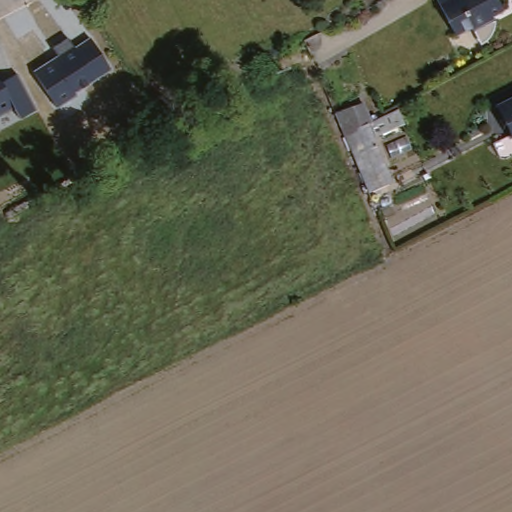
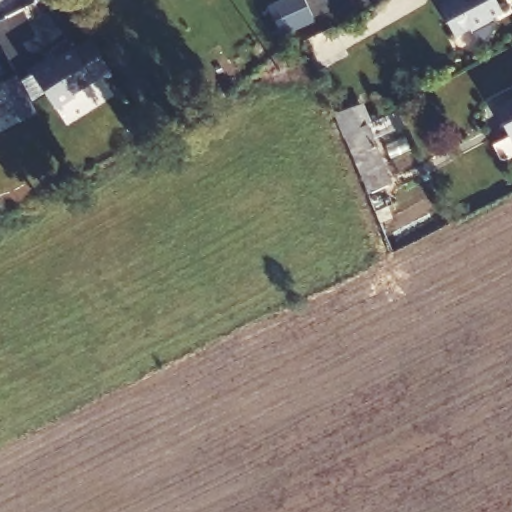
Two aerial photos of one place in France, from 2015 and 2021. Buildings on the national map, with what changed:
new [(305,0),(314,19),(281,34),(268,6),(283,0),(305,0)]
unchanged [(497,16),(497,23),(497,29),(495,35),(492,39),(487,44),(484,44),(475,28),(460,35),(441,0),(501,0),(507,11),(497,16)]
unchanged [(110,71),(95,80),(73,93),(76,97),(56,108),(33,71),(57,56),(52,49),(67,40),(72,48),(90,38),(110,71)]
unchanged [(17,74),(36,110),(19,119),(13,108),(0,116),(0,83),(17,74)]
unchanged [(512,99),(512,141),(495,108),(512,99)]
unchanged [(403,114),(408,129),(378,141),(396,185),(372,195),(348,141),(339,118),(356,111),(365,131),(372,128),(403,114)]

